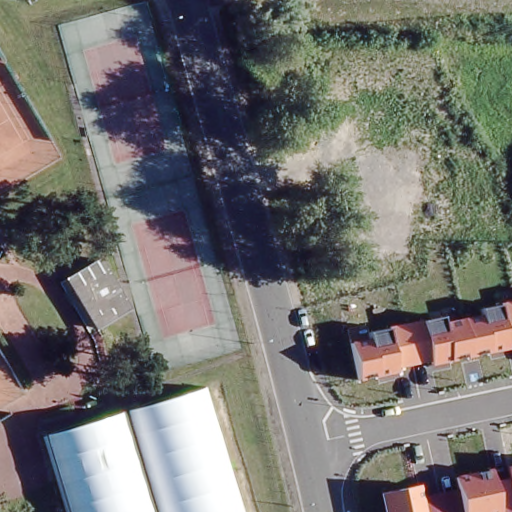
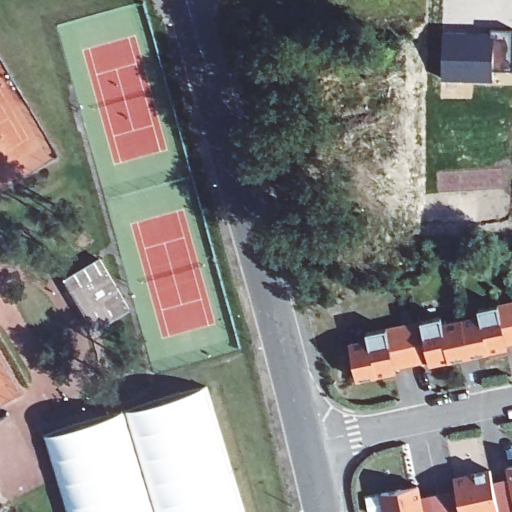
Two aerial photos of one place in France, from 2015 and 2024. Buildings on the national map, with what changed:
new [(494,68),(494,80),(442,78),(444,29),(490,32),(490,27),(512,28),(512,69),(494,68)]
unchanged [(82,298),(74,285),(70,277),(102,257),(108,268),(132,306),(122,312),(100,326),(82,298)]
unchanged [(367,338),(367,333),(442,316),(443,323),(479,315),(478,309),(512,301),(512,342),(507,343),(508,349),(430,367),(429,360),(395,367),(397,374),(358,382),(349,342),(367,338)]
unchanged [(205,389),(244,512),(68,512),(45,438),(205,389)]
unchanged [(422,495),(456,489),(454,476),(490,468),(493,481),(509,478),(506,465),(512,464),(512,512),(384,512),(380,495),(420,485),(422,495)]

